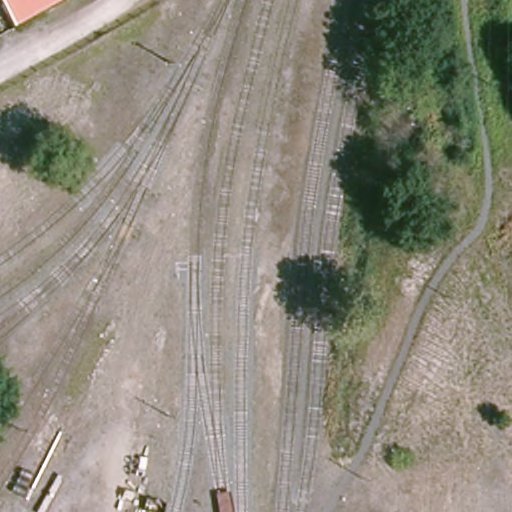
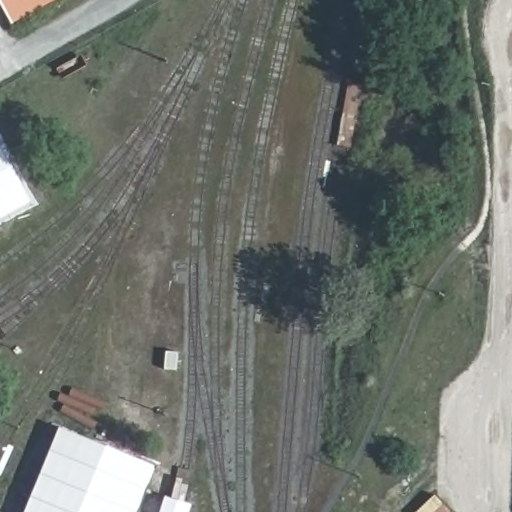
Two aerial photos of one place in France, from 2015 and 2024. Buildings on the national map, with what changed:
unchanged [(12,25),(0,2),(0,0),(59,0),(12,25)]
new [(0,219),(0,143),(32,202),(0,219)]
new [(26,512),(61,428),(151,465),(132,512),(26,512)]

